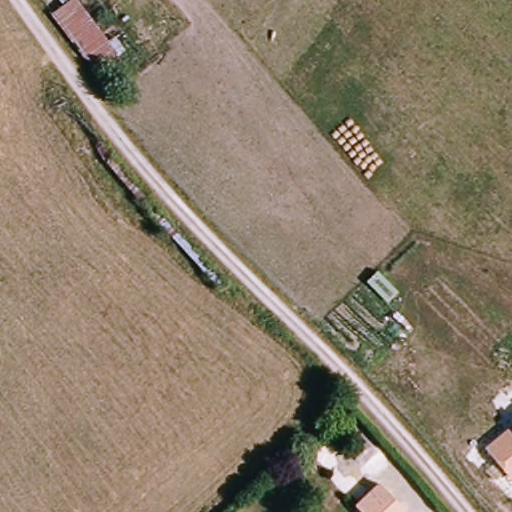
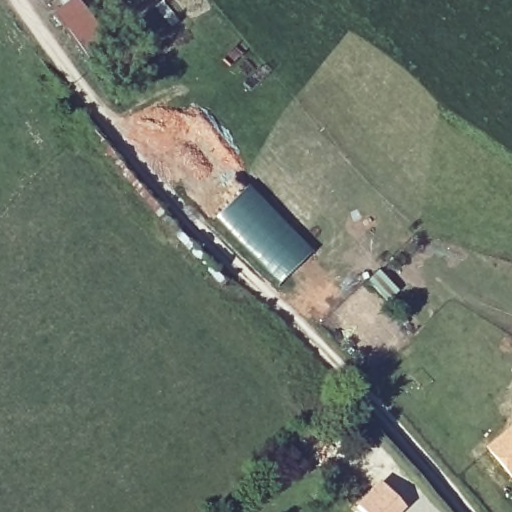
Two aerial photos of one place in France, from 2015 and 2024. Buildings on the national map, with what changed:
unchanged [(122,51),(98,69),(53,12),(68,0),(81,0),(122,51)]
new [(289,274),(273,258),(265,266),(216,217),(249,185),(275,212),(272,215),(310,253),(298,265),(289,274)]
unchanged [(488,446),(512,426),(512,476),(488,446)]
unchanged [(399,512),(370,512),(388,498),(399,512)]

